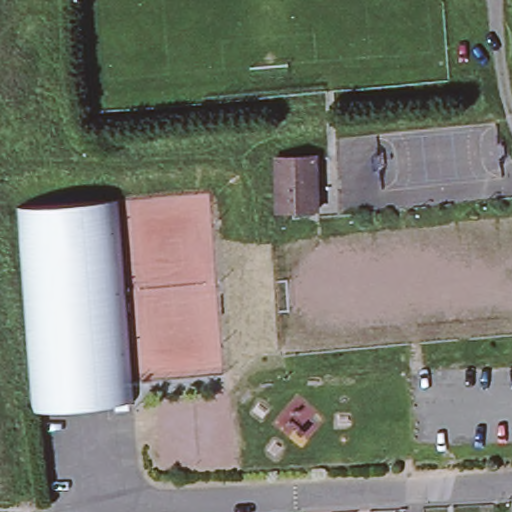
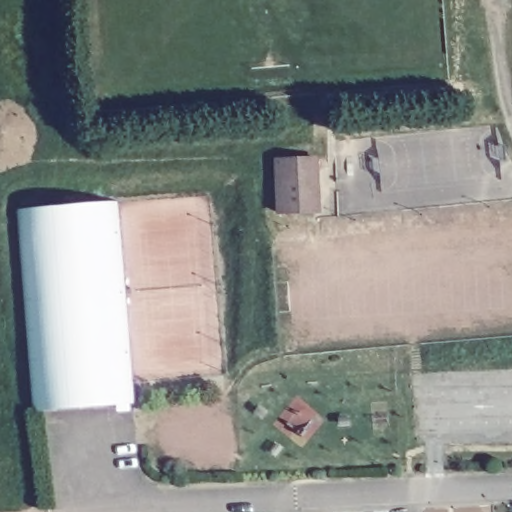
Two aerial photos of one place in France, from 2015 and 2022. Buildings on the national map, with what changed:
unchanged [(272,156),(315,155),(317,207),(274,208),(272,156)]
unchanged [(124,381),(125,401),(67,405),(25,409),(9,209),(11,208),(103,202),(110,202),(117,288),(124,381)]

